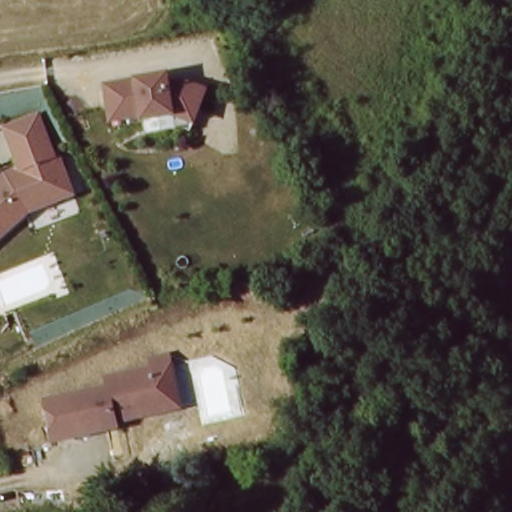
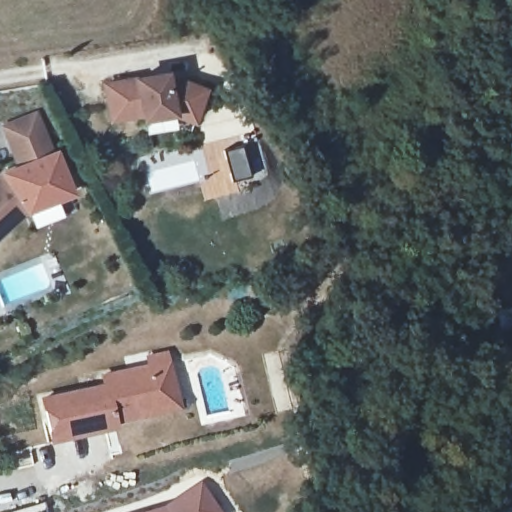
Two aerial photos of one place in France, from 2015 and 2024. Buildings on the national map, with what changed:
unchanged [(110,80),(183,73),(220,87),(203,127),(185,121),(115,125),(110,80)]
unchanged [(0,250),(0,181),(18,162),(7,128),(51,112),(84,195),(35,214),(0,250)]
unchanged [(56,446),(47,398),(108,385),(106,376),(150,366),(150,359),(177,353),(188,407),(132,420),(132,430),(56,446)]
new [(200,481),(223,512),(143,512),(163,505),(200,481)]

